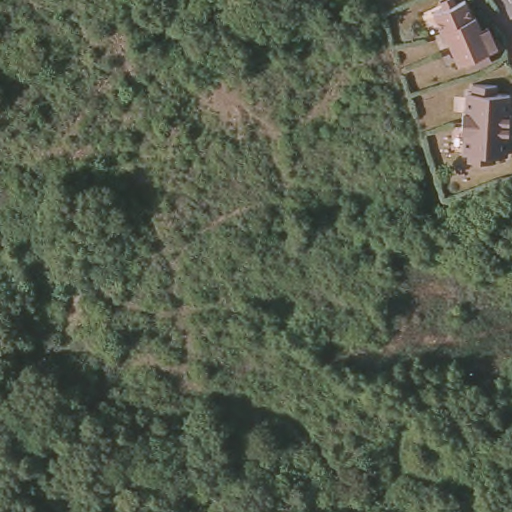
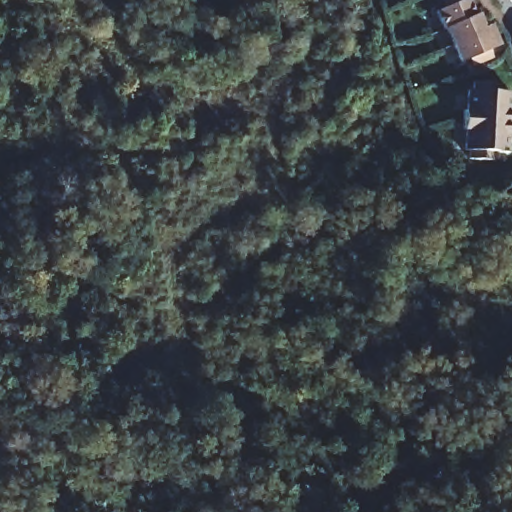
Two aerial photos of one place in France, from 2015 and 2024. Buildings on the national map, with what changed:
unchanged [(486,63),(473,69),(470,61),(462,64),(448,30),(445,32),(437,14),(446,9),(443,1),(445,0),(458,0),(460,4),(468,0),(475,17),(478,16),(484,30),(491,27),(500,47),(482,55),(486,63)]
unchanged [(495,162),(470,160),(471,152),(467,152),(468,131),(465,131),(466,112),(469,112),(470,92),(475,92),(475,83),(500,85),(499,93),(512,94),(512,108),(511,115),(512,115),(512,134),(510,134),(510,154),(495,153),(495,162)]

